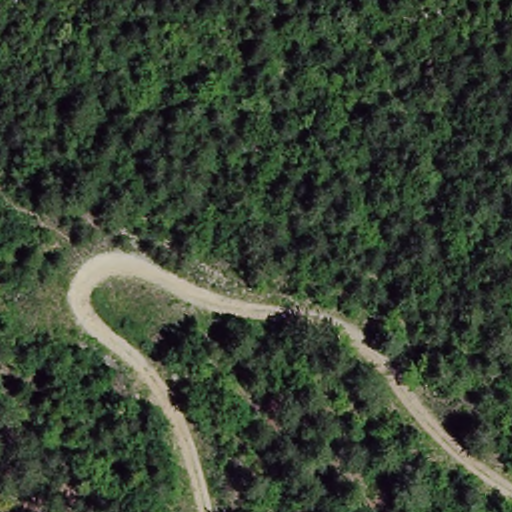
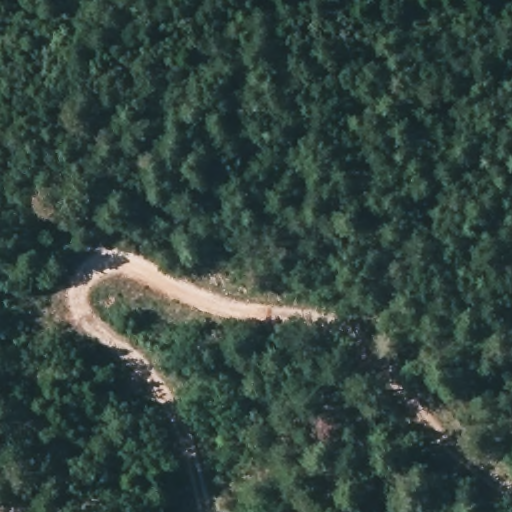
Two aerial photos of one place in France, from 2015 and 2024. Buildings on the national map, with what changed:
[]

